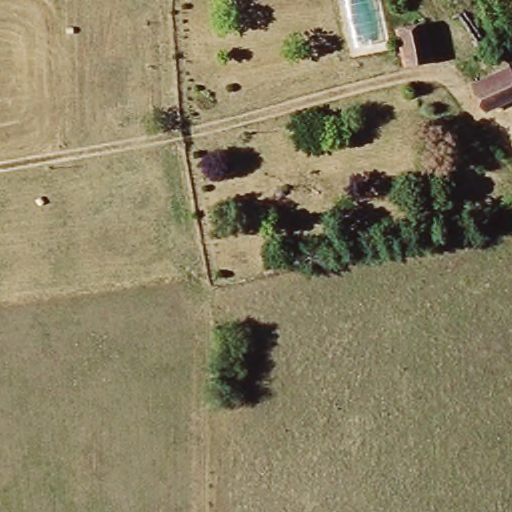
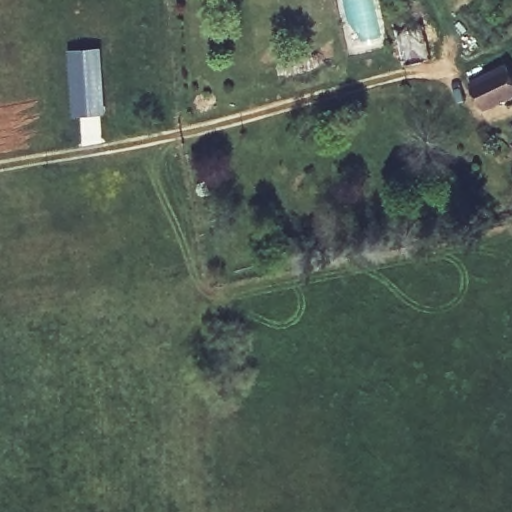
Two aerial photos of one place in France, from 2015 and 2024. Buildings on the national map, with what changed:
unchanged [(402,59),(393,23),(418,17),(427,53),(402,59)]
new [(80,146),(78,116),(70,117),(66,48),(102,45),(107,113),(100,114),(102,143),(80,146)]
unchanged [(472,73),(512,56),(512,86),(482,98),(472,73)]

